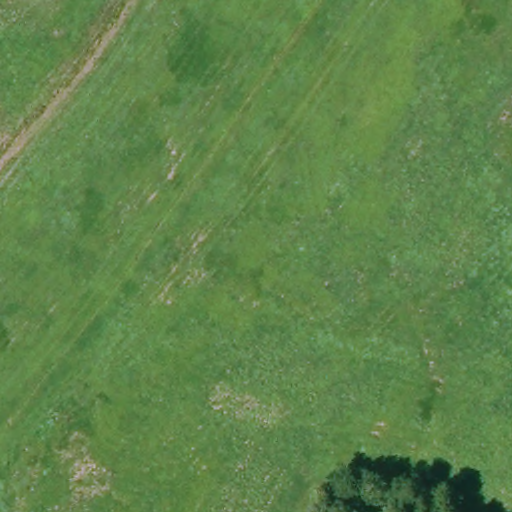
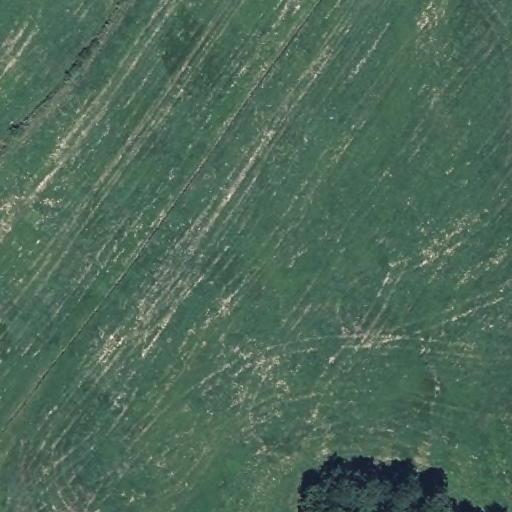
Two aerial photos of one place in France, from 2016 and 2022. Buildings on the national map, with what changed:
[]

